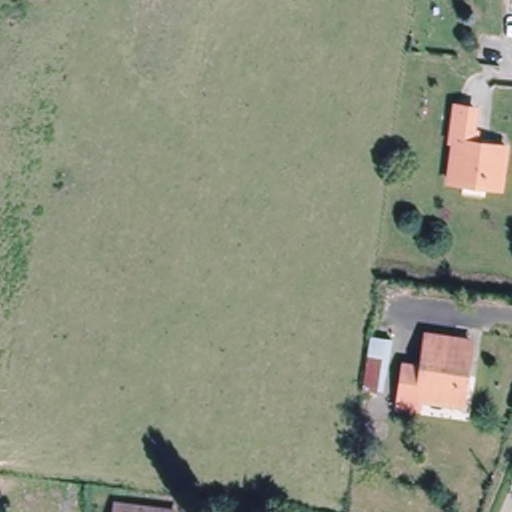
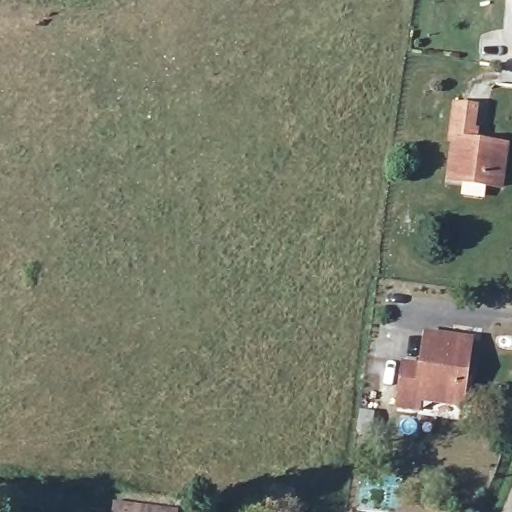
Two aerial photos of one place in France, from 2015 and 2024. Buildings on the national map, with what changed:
unchanged [(445,184),(451,144),(447,142),(450,102),(478,103),(476,128),(481,130),(481,141),(510,144),(503,190),(445,184)]
unchanged [(364,390),(370,337),(392,340),(383,393),(364,390)]
unchanged [(469,414),(426,410),(425,417),(400,415),(405,366),(423,367),(425,337),(479,342),(469,414)]
unchanged [(162,512),(118,512),(119,506),(162,512)]

